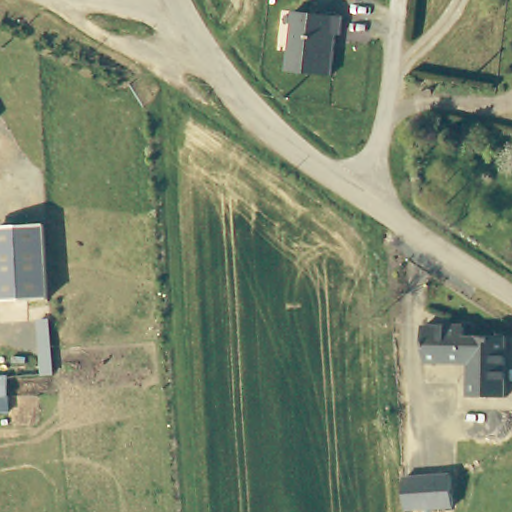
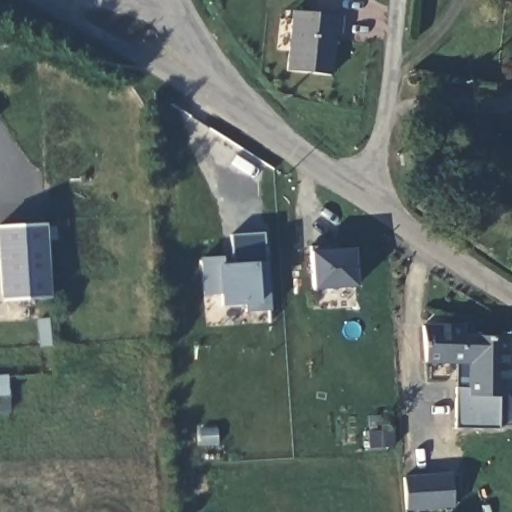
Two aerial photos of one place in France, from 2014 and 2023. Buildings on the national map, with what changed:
unchanged [(342,10),(340,28),(335,27),(330,69),(286,64),(292,4),(342,10)]
unchanged [(51,298),(7,301),(2,226),(46,223),(51,298)]
new [(270,310),(244,312),(247,304),(220,306),(219,297),(204,296),(201,258),(224,257),(227,265),(237,263),(232,236),(263,234),(270,310)]
new [(358,288),(313,291),(311,251),(355,248),(358,288)]
unchanged [(470,326),(470,332),(507,336),(504,395),(467,394),(468,361),(424,361),(422,326),(470,325),(470,326)]
new [(468,361),(467,394),(499,395),(498,429),(458,428),(456,361),(468,361)]
new [(11,377),(12,396),(0,396),(0,377),(11,377)]
unchanged [(406,477),(437,476),(455,475),(456,507),(439,507),(407,509),(406,477)]

